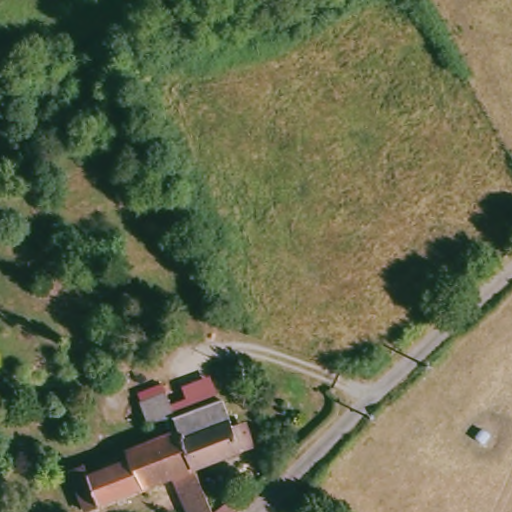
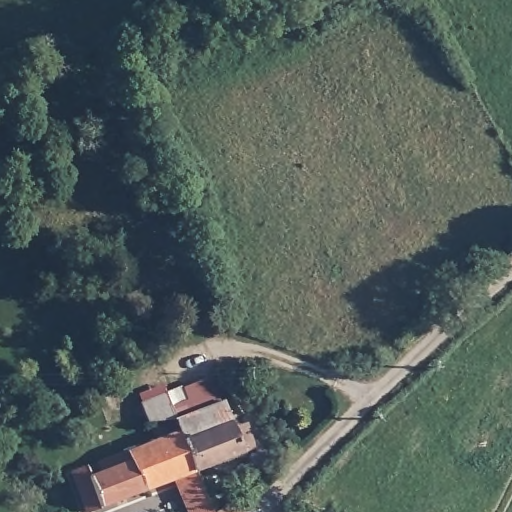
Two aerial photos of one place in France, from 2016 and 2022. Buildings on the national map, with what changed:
unchanged [(146,420),(138,399),(163,390),(168,406),(187,399),(192,409),(218,399),(228,421),(238,418),(248,446),(190,468),(176,428),(172,417),(146,420)]
unchanged [(170,474),(80,508),(67,469),(83,463),(87,471),(97,467),(95,458),(176,428),(190,468),(204,512),(227,496),(236,505),(227,512),(184,512),(170,474)]

